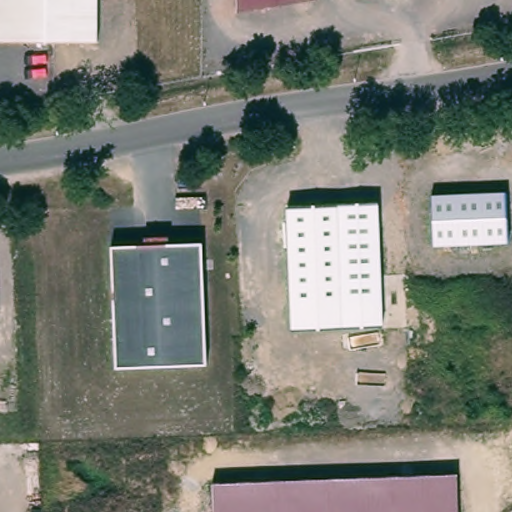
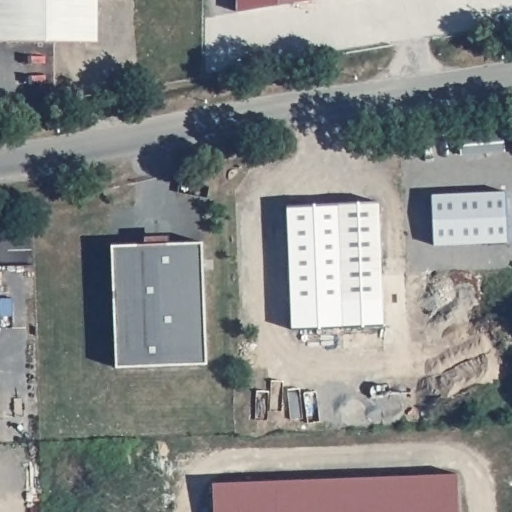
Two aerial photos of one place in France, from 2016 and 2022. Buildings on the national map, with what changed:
unchanged [(0,39),(0,0),(101,0),(101,40),(0,39)]
unchanged [(234,0),(273,0),(234,5),(234,0)]
unchanged [(435,244),(432,194),(505,190),(508,240),(435,244)]
unchanged [(342,298),(337,205),(380,203),(385,297),(342,298)]
unchanged [(342,298),(385,297),(385,325),(291,330),(287,208),(337,205),(342,298)]
unchanged [(116,365),(113,246),(201,241),(206,362),(116,365)]
unchanged [(211,481),(456,474),(458,512),(213,512),(211,481)]

